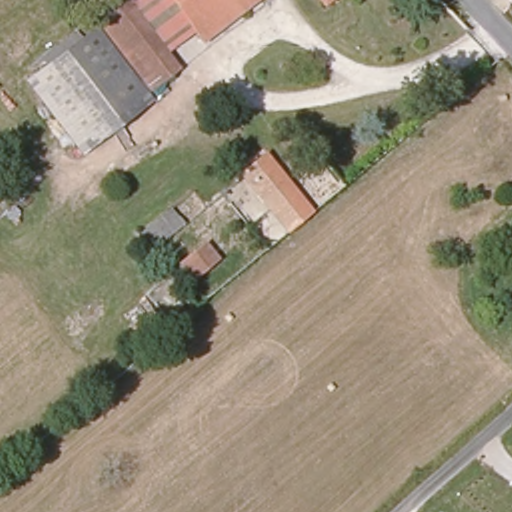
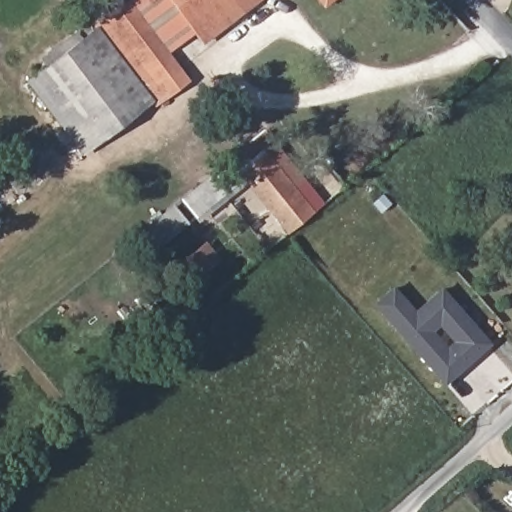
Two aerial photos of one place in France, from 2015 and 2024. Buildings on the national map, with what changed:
unchanged [(128,5),(134,0),(175,0),(199,28),(170,54),(128,5)]
unchanged [(204,32),(199,28),(175,0),(258,0),(211,40),(204,32)]
unchanged [(96,33),(128,5),(170,54),(183,69),(154,95),(96,33)]
unchanged [(90,152),(34,89),(96,33),(154,95),(90,152)]
unchanged [(237,176),(268,150),(313,212),(285,234),(237,176)]
unchanged [(194,282),(176,260),(204,239),(220,257),(194,282)]
new [(394,290),(416,315),(443,292),(490,346),(446,385),(377,306),(394,290)]

